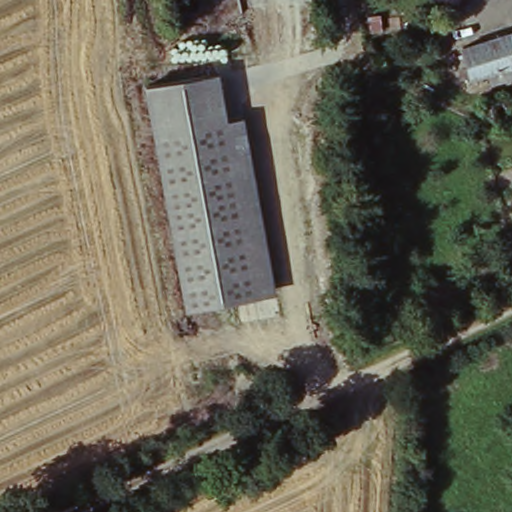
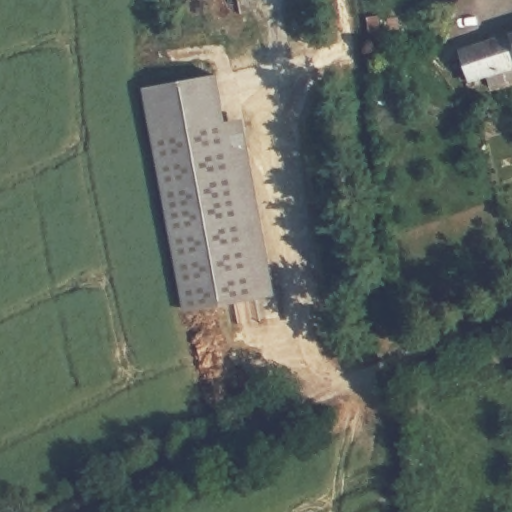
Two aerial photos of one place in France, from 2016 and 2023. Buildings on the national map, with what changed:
unchanged [(489,75),(472,81),(462,49),(512,34),(512,80),(492,86),(489,75)]
unchanged [(214,75),(223,124),(153,136),(144,88),(214,75)]
unchanged [(223,124),(254,298),(185,311),(153,136),(223,124)]

